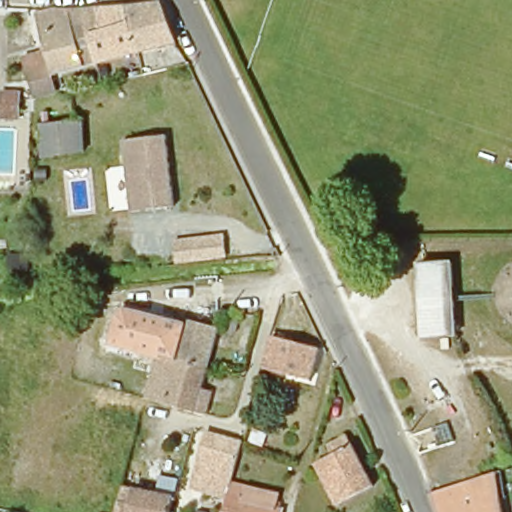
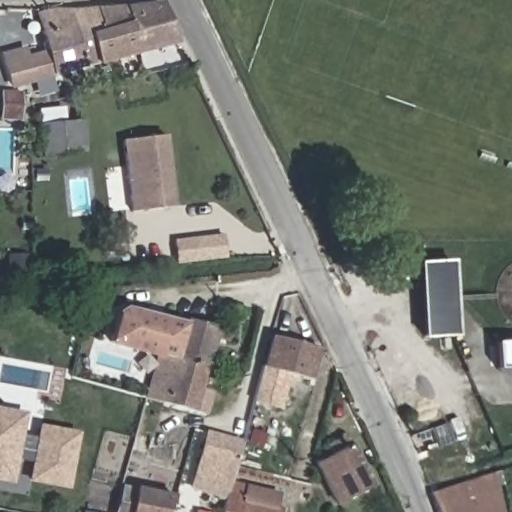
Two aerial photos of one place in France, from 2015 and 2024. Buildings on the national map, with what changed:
unchanged [(178,44),(142,54),(132,12),(165,8),(178,44)]
unchanged [(46,31),(42,14),(56,11),(72,12),(72,14),(99,11),(104,33),(91,36),(98,64),(61,74),(11,88),(2,55),(27,48),(32,58),(49,55),(43,31),(46,31)]
unchanged [(98,64),(91,36),(104,33),(99,11),(131,11),(132,12),(142,54),(98,64)]
unchanged [(4,120),(5,95),(24,95),(23,120),(4,120)]
unchanged [(87,153),(87,157),(52,162),(42,163),(42,156),(47,156),(44,129),(80,125),(86,124),(87,153)]
unchanged [(169,164),(170,171),(174,202),(143,206),(132,207),(123,136),(128,135),(165,131),(169,164)]
unchanged [(179,263),(177,241),(227,235),(229,257),(179,263)]
unchanged [(428,268),(456,266),(459,340),(453,340),(427,341),(425,268),(428,268)]
unchanged [(153,378),(158,358),(109,346),(113,328),(115,318),(123,311),(130,313),(184,327),(174,362),(168,382),(153,378)]
unchanged [(174,362),(184,327),(185,323),(216,331),(206,371),(174,362)]
unchanged [(315,384),(267,372),(275,341),(321,353),(315,384)]
new [(512,365),(498,366),(497,344),(512,344),(512,365)]
unchanged [(210,393),(203,418),(197,416),(162,406),(168,382),(174,362),(206,371),(200,391),(210,393)]
new [(21,417),(16,442),(35,446),(39,430),(74,437),(63,488),(28,482),(33,460),(13,456),(8,482),(0,481),(0,413),(21,417)]
unchanged [(440,453),(436,432),(453,429),(457,449),(440,453)]
unchanged [(319,465),(338,456),(333,447),(350,438),(376,489),(340,506),(319,465)]
unchanged [(225,511),(226,506),(206,501),(207,497),(191,492),(194,481),(205,442),(240,452),(230,492),(229,496),(276,510),(276,512),(225,512),(225,511)]
unchanged [(500,475),(502,490),(486,491),(487,496),(493,495),(494,502),(499,502),(500,512),(434,512),(428,497),(483,480),(500,475)]
unchanged [(125,485),(161,493),(164,479),(180,482),(176,496),(173,512),(117,512),(125,485)]

